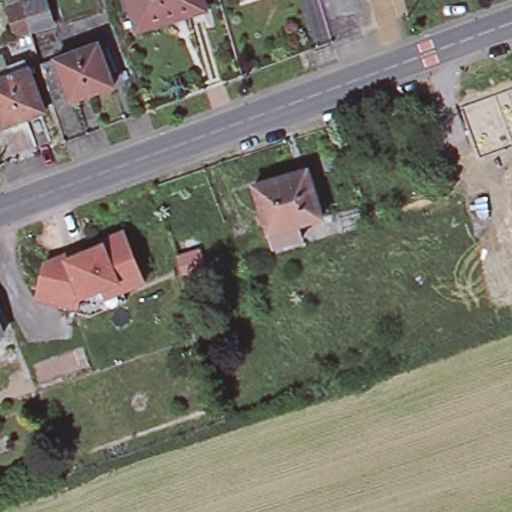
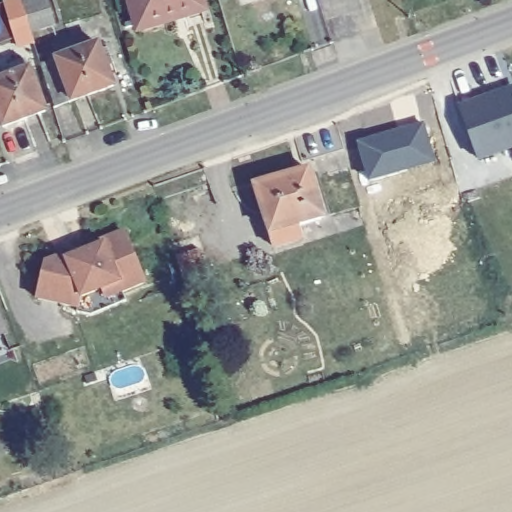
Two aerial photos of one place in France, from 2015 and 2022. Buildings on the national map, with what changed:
unchanged [(15,0),(52,0),(58,20),(34,27),(16,32),(7,2),(15,0)]
unchanged [(133,33),(122,0),(197,0),(201,12),(133,33)]
unchanged [(101,40),(116,84),(73,99),(58,105),(44,61),(57,56),(101,40)]
unchanged [(43,117),(0,133),(0,62),(3,62),(7,72),(26,66),(43,117)]
new [(456,107),(512,87),(512,151),(479,164),(456,107)]
new [(427,120),(438,161),(368,179),(357,141),(427,120)]
demolished [(481,162),(488,182),(465,190),(458,169),(481,162)]
unchanged [(272,244),(267,230),(253,184),(304,169),(319,215),(295,222),(300,235),(272,244)]
unchanged [(103,308),(92,312),(79,307),(80,305),(39,296),(47,260),(59,254),(68,257),(82,251),(104,242),(102,239),(125,229),(146,280),(124,289),(128,298),(103,308)]
unchanged [(209,270),(185,278),(178,259),(203,250),(209,270)]
unchanged [(1,325),(0,325),(0,322),(1,325)]

